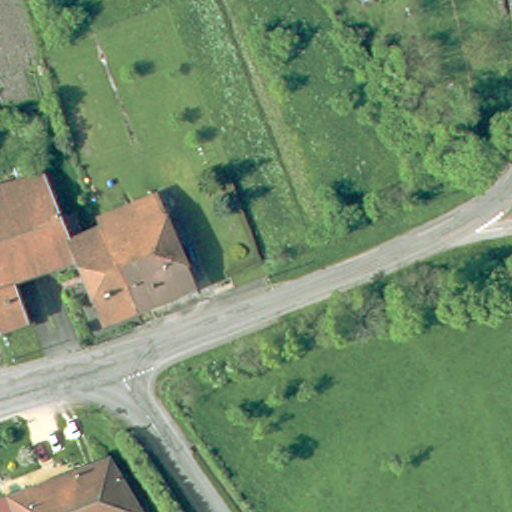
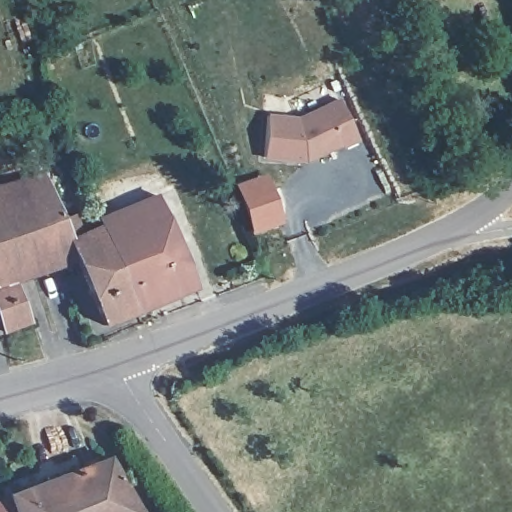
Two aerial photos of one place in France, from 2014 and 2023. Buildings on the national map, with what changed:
new [(268,114),(297,117),(340,98),(360,139),(306,162),(263,157),(268,114)]
unchanged [(105,318),(78,252),(17,275),(30,313),(2,325),(0,320),(0,179),(43,162),(63,210),(75,205),(84,226),(102,219),(137,305),(105,318)]
unchanged [(100,213),(103,212),(150,191),(160,186),(198,278),(137,305),(102,219),(100,213)]
unchanged [(2,325),(0,325),(0,320),(2,325)]
unchanged [(148,511),(145,512),(23,512),(11,492),(93,462),(116,453),(148,511)]
unchanged [(23,512),(0,512),(0,496),(11,492),(23,512)]

